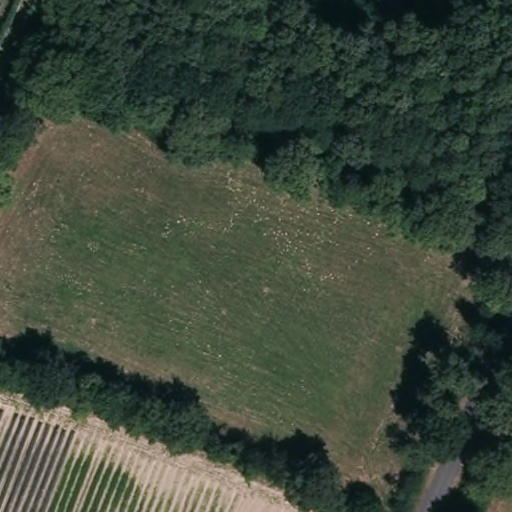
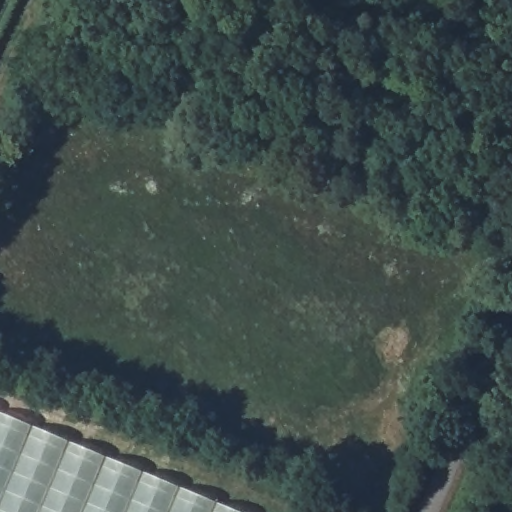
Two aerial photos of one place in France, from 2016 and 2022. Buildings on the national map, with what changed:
new [(0,412),(241,512),(0,512),(0,412)]

